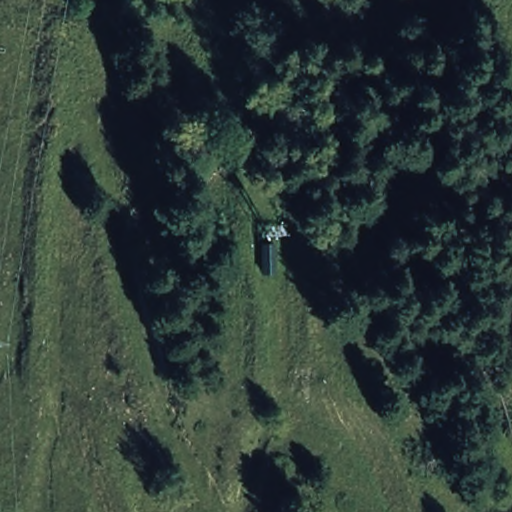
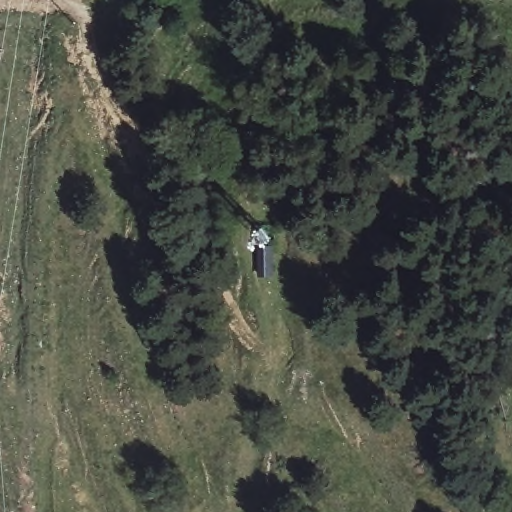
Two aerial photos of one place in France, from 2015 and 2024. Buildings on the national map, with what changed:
unchanged [(260,274),(257,246),(275,245),(277,274),(260,274)]

